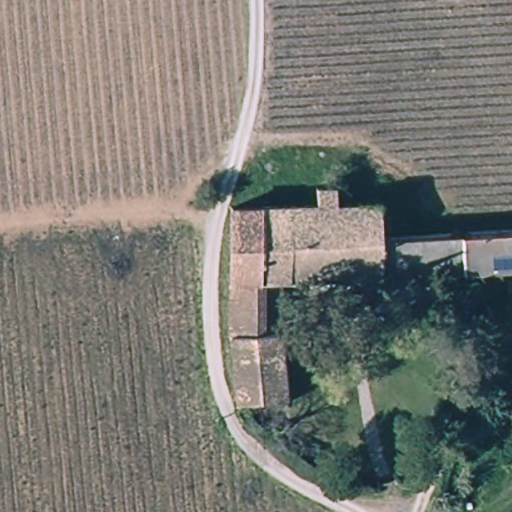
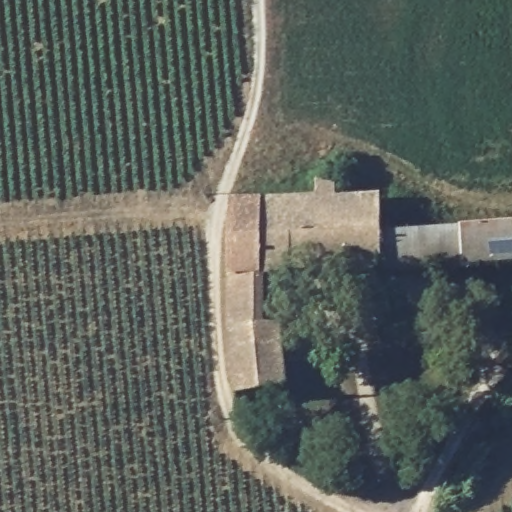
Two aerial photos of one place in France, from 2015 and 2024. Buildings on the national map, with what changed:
unchanged [(321,191),(342,191),(342,208),(385,207),(385,241),(322,245),(322,208),(321,191)]
unchanged [(385,241),(443,237),(512,233),(512,272),(363,281),(283,283),(284,335),(292,398),(240,403),(235,336),(235,210),(322,208),(322,245),(385,241)]

